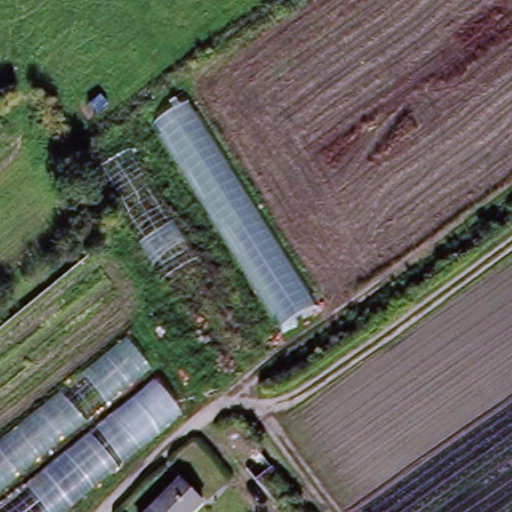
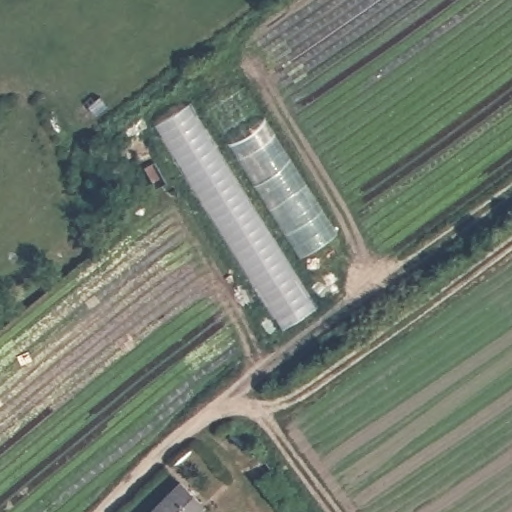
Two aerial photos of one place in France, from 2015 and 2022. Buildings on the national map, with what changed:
unchanged [(320,300),(277,320),(155,119),(190,95),(320,300)]
demolished [(61,512),(0,512),(0,438),(127,334),(187,411),(61,512)]
unchanged [(288,511),(277,497),(245,460),(254,451),(265,464),(271,460),(292,486),(289,490),(300,502),(288,511)]
unchanged [(197,512),(148,512),(185,477),(208,501),(197,512)]

